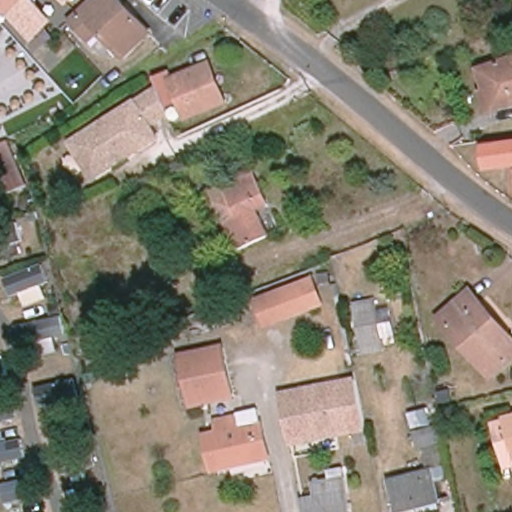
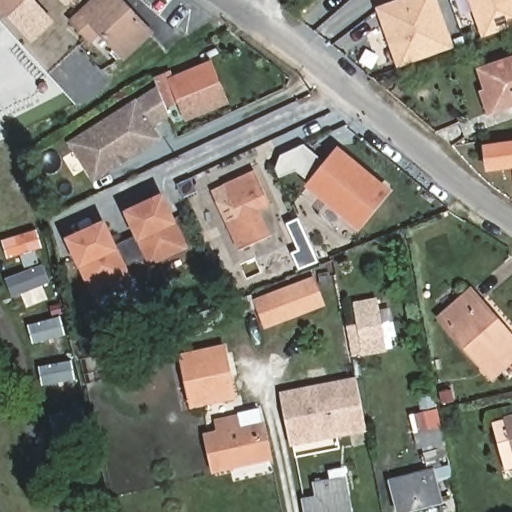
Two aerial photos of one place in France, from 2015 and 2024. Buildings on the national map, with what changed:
unchanged [(11,24),(22,14),(15,6),(9,12),(0,2),(0,0),(36,0),(56,22),(31,45),(11,24)]
unchanged [(71,2),(69,0),(72,0),(71,2)]
unchanged [(126,58),(101,33),(92,42),(74,22),(97,0),(118,0),(151,35),(126,58)]
new [(397,69),(376,8),(397,0),(438,0),(456,48),(397,69)]
new [(482,39),(469,0),(512,0),(512,28),(482,39)]
unchanged [(472,98),(478,95),(470,76),(512,60),(512,107),(480,119),(472,98)]
unchanged [(180,104),(170,79),(176,77),(213,63),(225,104),(187,122),(180,104)]
unchanged [(170,79),(180,104),(170,109),(173,117),(160,126),(168,141),(95,184),(68,140),(154,88),(151,79),(172,68),(176,77),(170,79)]
unchanged [(488,169),(485,147),(512,143),(512,166),(488,169)]
new [(359,231),(305,186),(339,146),(392,190),(359,231)]
demolished [(83,177),(58,190),(48,169),(72,157),(83,177)]
unchanged [(270,206),(258,211),(270,237),(239,251),(213,193),(254,174),(270,206)]
new [(150,266),(146,259),(128,267),(131,275),(90,294),(80,269),(66,240),(106,221),(117,245),(135,237),(123,212),(164,194),(178,224),(190,249),(150,266)]
unchanged [(258,300),(313,278),(323,301),(267,324),(258,300)]
demolished [(163,291),(170,309),(143,320),(136,302),(163,291)]
unchanged [(512,341),(512,360),(492,378),(442,319),(471,294),(512,341)]
unchanged [(384,346),(361,351),(359,336),(363,335),(359,314),(377,311),(384,346)]
unchanged [(187,360),(222,353),(231,397),(196,404),(187,360)]
unchanged [(284,396),(357,381),(367,428),(367,430),(293,444),(284,396)]
unchanged [(207,437),(221,435),(218,422),(238,418),(261,413),(263,426),(271,461),(215,473),(207,437)]
unchanged [(434,469),(428,470),(412,415),(430,413),(434,425),(442,429),(453,478),(437,485),(434,469)]
unchanged [(506,473),(493,424),(512,419),(512,471),(506,473)]
unchanged [(428,470),(434,469),(437,485),(441,503),(404,512),(396,512),(389,481),(428,470)]
unchanged [(306,512),(304,502),(318,500),(315,485),(346,480),(351,512),(306,512)]

